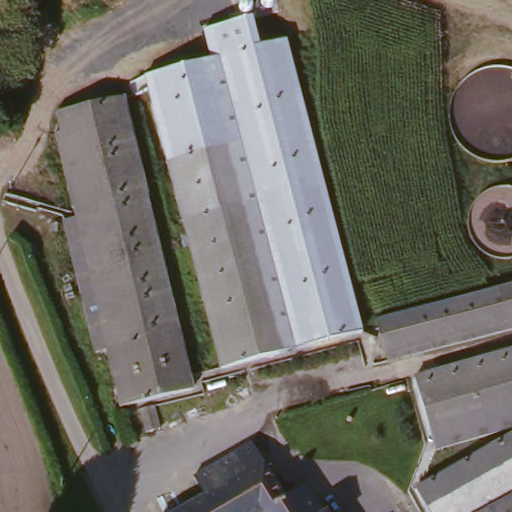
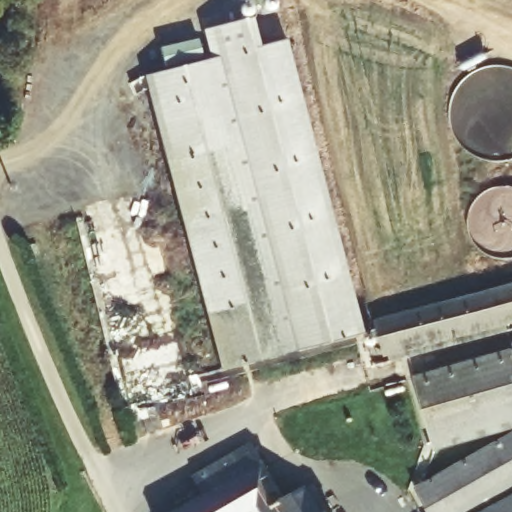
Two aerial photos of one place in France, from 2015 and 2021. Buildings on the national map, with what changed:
unchanged [(363,331),(298,349),(244,140),(168,160),(144,77),(212,58),(204,32),(254,17),(263,47),(289,40),(363,331)]
demolished [(196,386),(121,403),(52,117),(128,98),(196,386)]
unchanged [(244,140),(298,349),(223,369),(168,160),(244,140)]
unchanged [(512,285),(512,329),(388,361),(377,321),(512,285)]
unchanged [(512,352),(512,428),(439,450),(419,378),(512,352)]
unchanged [(419,488),(512,437),(512,512),(431,512),(419,488)]
unchanged [(209,495),(198,474),(258,442),(291,497),(311,485),(328,512),(179,512),(209,495)]

